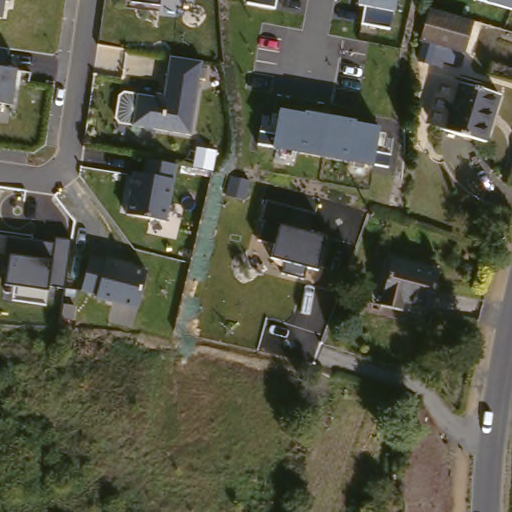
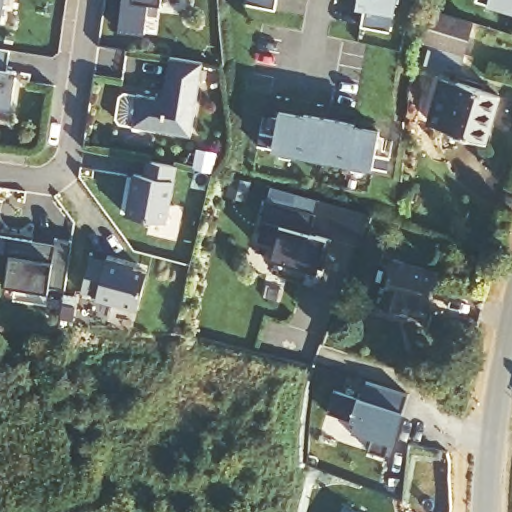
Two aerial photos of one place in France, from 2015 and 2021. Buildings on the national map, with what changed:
unchanged [(0,19),(0,0),(5,0),(3,19),(0,19)]
unchanged [(133,2),(133,0),(161,0),(161,5),(133,2)]
unchanged [(246,3),(246,0),(275,0),(274,9),(246,3)]
unchanged [(390,30),(361,26),(366,5),(356,4),(356,0),(396,0),(394,10),(390,30)]
unchanged [(509,0),(512,0),(512,1),(509,0)]
unchanged [(476,20),(469,49),(428,38),(435,9),(476,20)]
unchanged [(165,100),(173,59),(203,64),(188,134),(133,125),(137,96),(165,100)]
unchanged [(11,106),(0,105),(0,70),(16,72),(11,106)]
unchanged [(505,91),(490,143),(447,130),(438,117),(451,75),(505,91)]
unchanged [(376,145),(390,149),(386,169),(367,164),(272,148),(257,145),(263,115),(276,117),(278,110),(379,128),(376,145)]
unchanged [(136,173),(144,175),(149,163),(175,168),(166,220),(128,217),(136,173)]
unchanged [(317,214),(312,234),(327,237),(319,272),(307,267),(304,279),(281,273),(284,262),(273,259),(277,243),(259,241),(267,203),(317,214)]
unchanged [(55,243),(73,244),(64,290),(50,290),(3,283),(6,254),(9,236),(55,243)]
unchanged [(447,270),(432,317),(385,300),(400,255),(447,270)]
unchanged [(135,310),(94,299),(95,294),(84,290),(93,262),(106,264),(108,259),(147,270),(135,310)]
new [(336,392),(363,399),(368,382),(410,394),(404,413),(396,411),(392,424),(398,426),(388,457),(370,452),(374,438),(354,432),(357,423),(329,414),(336,392)]

